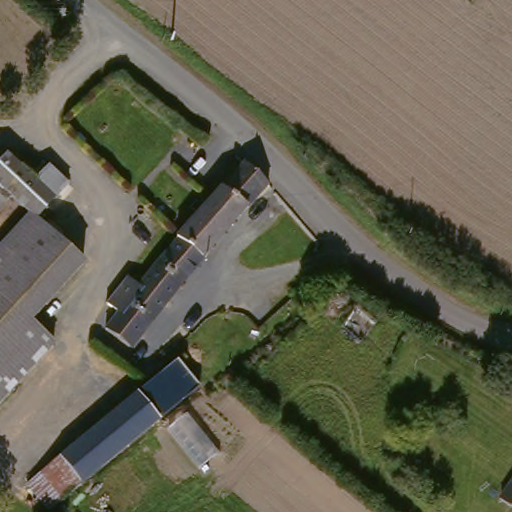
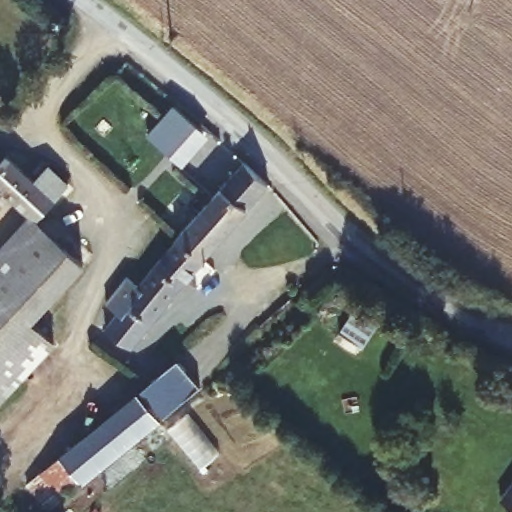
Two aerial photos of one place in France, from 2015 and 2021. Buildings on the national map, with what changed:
new [(171,108),(202,133),(176,165),(145,139),(171,108)]
unchanged [(66,203),(49,220),(96,265),(38,321),(61,344),(0,409),(0,257),(39,214),(18,197),(0,215),(0,168),(13,152),(66,203)]
unchanged [(190,236),(231,189),(250,164),(275,190),(263,204),(239,231),(215,258),(213,260),(188,239),(190,236)]
unchanged [(213,260),(209,266),(190,287),(175,274),(165,266),(188,239),(213,260)]
unchanged [(175,274),(190,287),(174,304),(137,344),(134,348),(110,333),(115,327),(146,289),(143,286),(136,280),(156,257),(163,264),(165,266),(175,274)]
unchanged [(169,375),(178,368),(188,380),(195,388),(188,394),(163,416),(52,509),(32,486),(97,434),(143,397),(148,393),(169,375)]
unchanged [(512,495),(512,500),(510,498),(512,495)]

